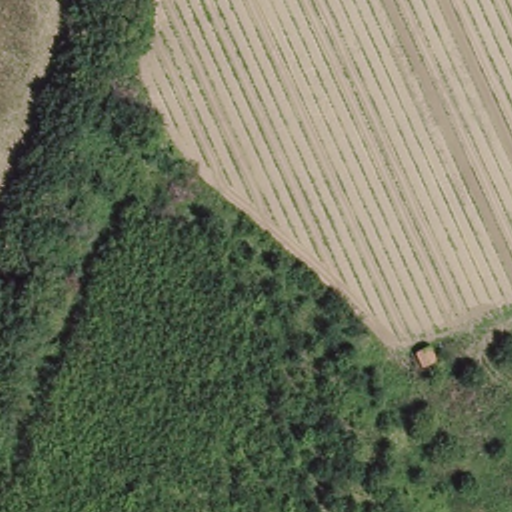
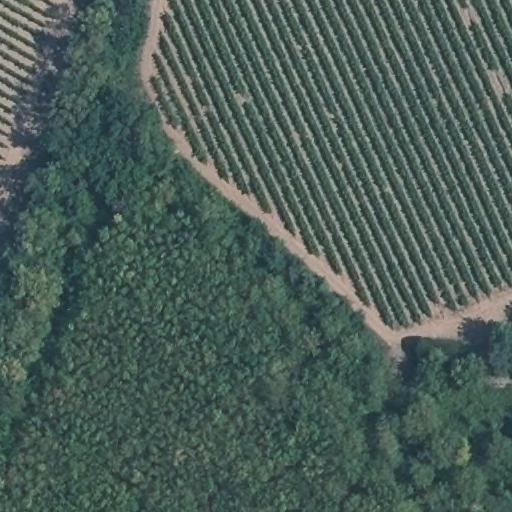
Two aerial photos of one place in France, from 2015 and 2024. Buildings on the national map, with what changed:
unchanged [(432,338),(439,355),(422,361),(415,345),(432,338)]

